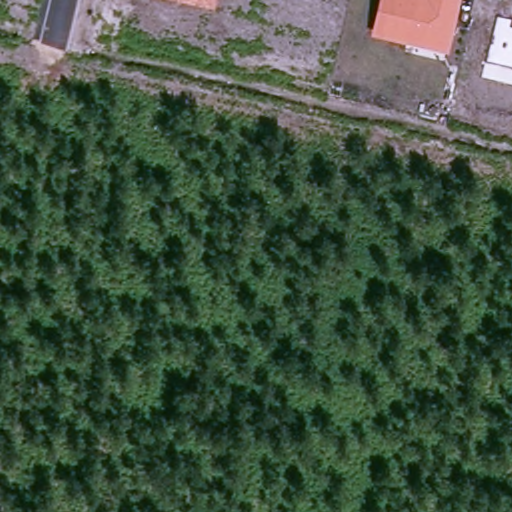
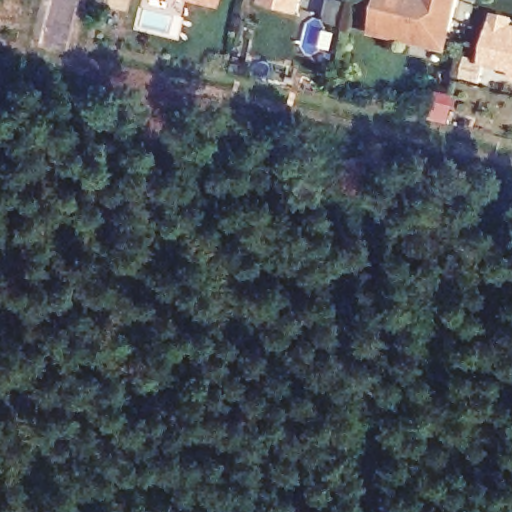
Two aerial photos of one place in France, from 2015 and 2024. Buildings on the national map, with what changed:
unchanged [(216,9),(180,0),(218,0),(216,9)]
new [(297,12),(262,5),(264,0),(300,0),(297,12)]
unchanged [(449,53),(372,36),(380,0),(462,0),(449,53)]
new [(512,16),(512,25),(512,73),(511,72),(483,66),(494,13),(512,16)]

